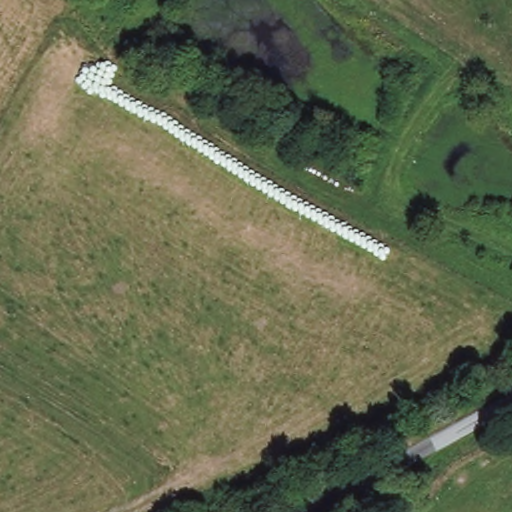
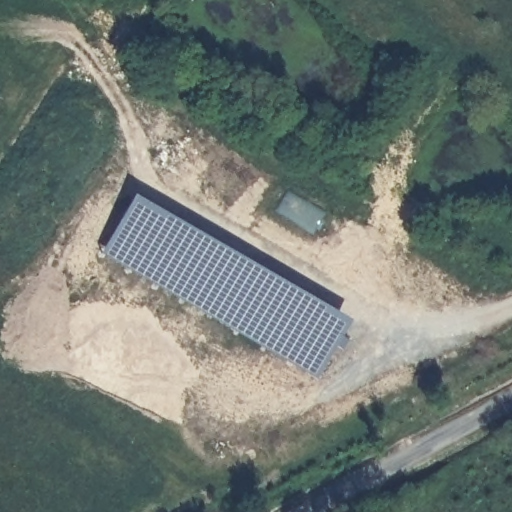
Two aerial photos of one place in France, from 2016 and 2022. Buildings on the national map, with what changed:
new [(135,195),(352,321),(318,377),(101,254),(135,195)]

